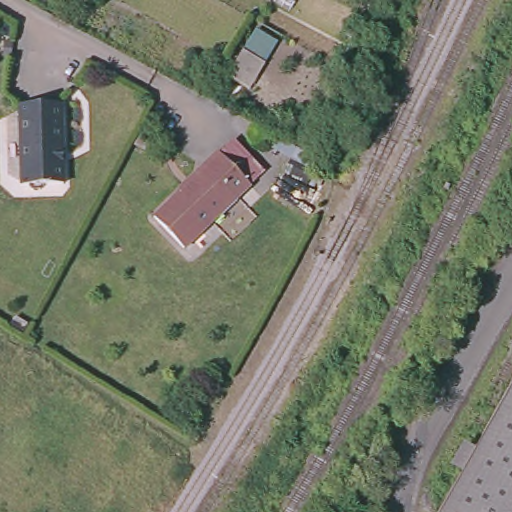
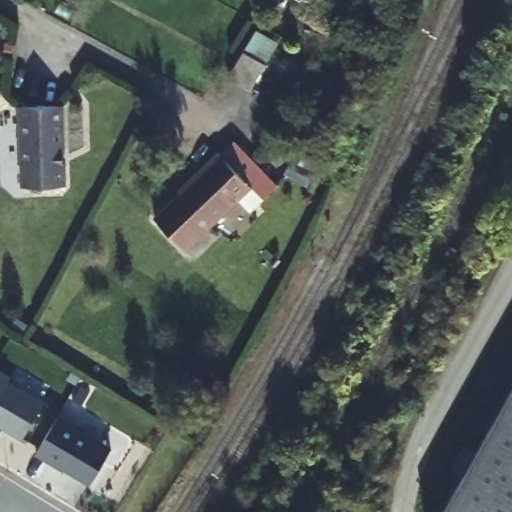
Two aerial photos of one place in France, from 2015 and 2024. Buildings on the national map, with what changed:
unchanged [(259,63),(252,76),(244,90),(222,77),(230,65),(237,51),(259,63)]
unchanged [(62,100),(65,180),(44,180),(42,185),(34,185),(32,180),(25,181),(22,100),(62,100)]
unchanged [(247,181),(180,245),(150,213),(202,164),(199,160),(214,146),(247,181)]
unchanged [(452,191),(447,200),(439,195),(443,186),(452,191)]
new [(7,383),(44,406),(24,440),(0,425),(0,374),(10,380),(7,383)]
unchanged [(512,384),(512,512),(437,512),(512,384)]
new [(111,451),(90,484),(40,453),(57,420),(111,451)]

